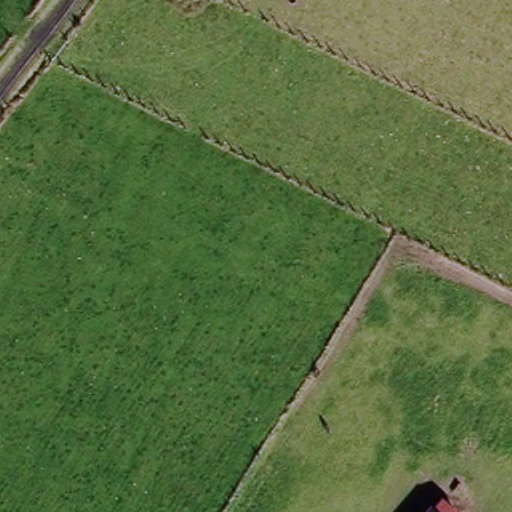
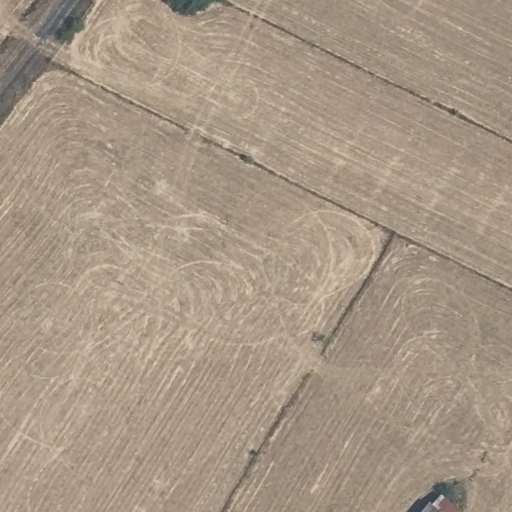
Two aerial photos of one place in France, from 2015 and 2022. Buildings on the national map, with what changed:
unchanged [(453,512),(425,512),(439,498),(453,512)]

